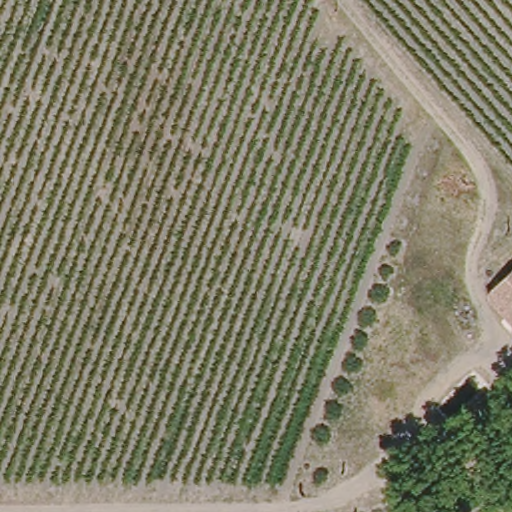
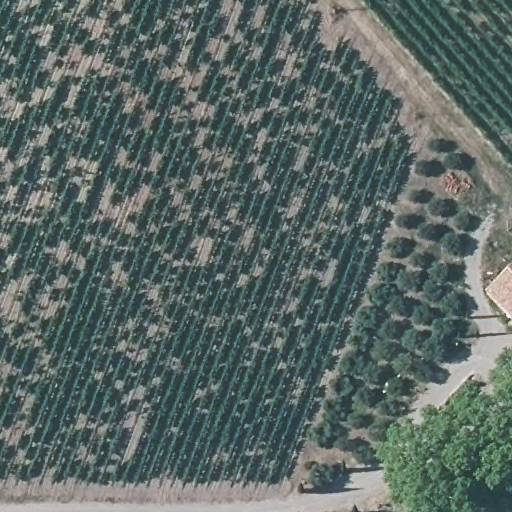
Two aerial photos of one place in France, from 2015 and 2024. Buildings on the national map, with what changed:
unchanged [(486,288),(512,265),(512,317),(486,288)]

